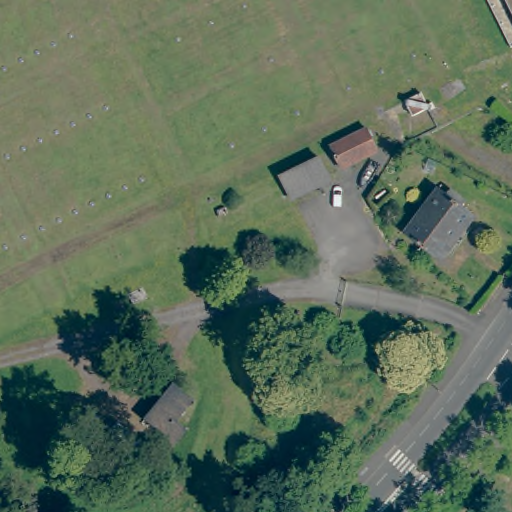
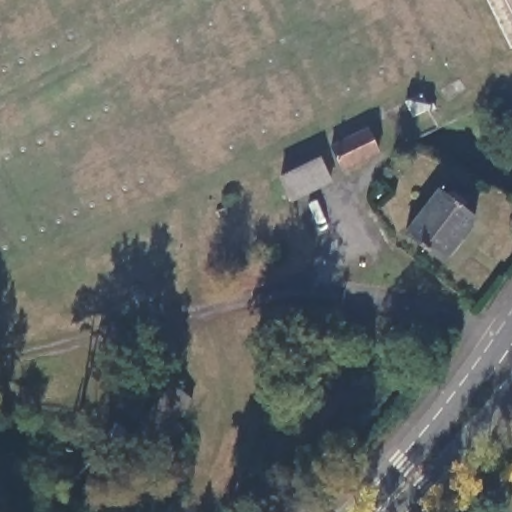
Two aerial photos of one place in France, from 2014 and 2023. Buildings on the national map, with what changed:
unchanged [(488,0),(512,0),(512,43),(510,44),(488,0)]
unchanged [(406,102),(421,94),(428,109),(413,116),(406,102)]
unchanged [(332,146),(367,130),(377,152),(342,169),(332,146)]
unchanged [(282,176),(320,157),(331,179),(292,198),(282,176)]
unchanged [(406,234),(440,190),(447,196),(451,191),(466,202),(462,207),(475,218),(442,262),(406,234)]
unchanged [(139,414),(169,379),(188,394),(173,415),(182,423),(170,438),(139,414)]

